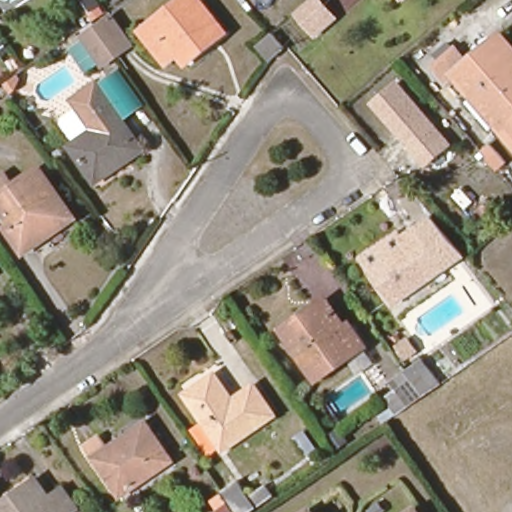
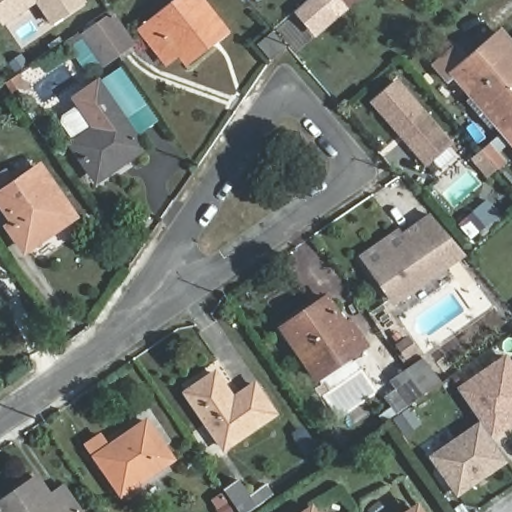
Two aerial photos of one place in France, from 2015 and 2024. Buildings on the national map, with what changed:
new [(0,20),(0,0),(31,0),(0,20)]
new [(50,21),(35,0),(80,0),(50,21)]
demolished [(100,4),(86,12),(78,0),(97,0),(100,4)]
unchanged [(177,52),(164,62),(140,30),(180,0),(199,0),(223,31),(204,46),(184,61),(177,52)]
unchanged [(333,15),(313,30),(295,9),(305,0),(321,0),(333,15)]
unchanged [(64,44),(80,35),(96,25),(111,15),(131,45),(117,54),(100,65),(84,75),(64,44)]
unchanged [(266,59),(254,44),(271,30),(279,42),(282,46),(269,56),(266,59)]
unchanged [(453,47),(465,62),(498,34),(512,50),(512,89),(484,112),(480,116),(465,100),(470,95),(451,75),(445,81),(432,66),(453,47)]
unchanged [(121,67),(145,105),(125,119),(101,81),(121,67)]
unchanged [(426,167),(371,100),(397,78),(454,144),(426,167)]
unchanged [(98,127),(78,96),(101,81),(125,119),(144,147),(122,162),(120,160),(94,176),(73,143),(98,127)]
unchanged [(484,112),(512,89),(512,145),(494,125),(490,128),(480,116),(484,112)]
new [(491,145),(507,163),(499,170),(490,179),(473,160),(483,152),(491,145)]
unchanged [(26,247),(12,226),(18,223),(1,199),(0,196),(0,179),(9,172),(19,186),(44,170),(74,215),(26,247)]
unchanged [(432,215),(466,255),(441,271),(439,268),(435,262),(413,229),(432,215)]
unchanged [(435,262),(439,268),(393,300),(370,267),(363,257),(397,234),(400,237),(413,229),(435,262)]
unchanged [(346,325),(361,345),(315,377),(278,325),(305,306),(308,310),(323,300),(343,326),(346,325)]
new [(456,387),(506,352),(512,362),(512,425),(492,438),(456,387)]
unchanged [(421,361),(436,383),(426,390),(420,395),(394,413),(384,399),(396,391),(389,382),(403,372),(404,373),(421,361)]
unchanged [(276,415),(226,447),(189,394),(217,375),(230,395),(235,401),(256,387),(276,415)]
unchanged [(123,496),(89,446),(103,436),(113,450),(129,439),(127,436),(148,421),(174,460),(123,496)]
new [(505,463),(456,495),(427,455),(478,422),(505,463)]
unchanged [(48,497),(61,490),(77,512),(0,512),(0,503),(34,478),(48,497)]
unchanged [(240,487),(249,502),(268,490),(275,499),(256,512),(238,512),(227,495),(240,487)]
unchanged [(311,512),(305,512),(309,509),(311,512)]

